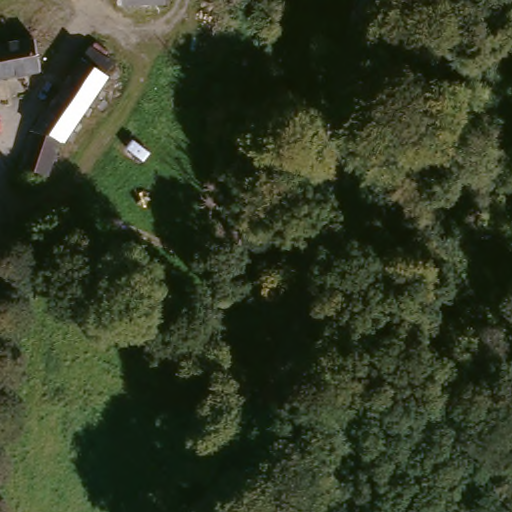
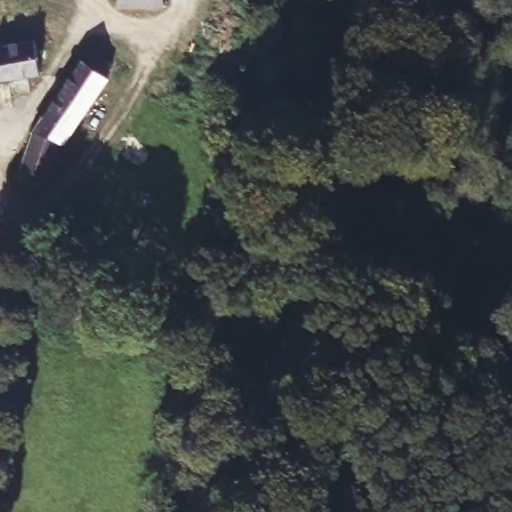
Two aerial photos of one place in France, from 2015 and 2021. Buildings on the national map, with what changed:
unchanged [(114,11),(114,0),(164,0),(164,8),(114,11)]
unchanged [(37,61),(38,69),(0,75),(0,46),(32,40),(37,61)]
unchanged [(50,180),(18,172),(32,128),(79,59),(107,77),(64,142),(50,180)]

